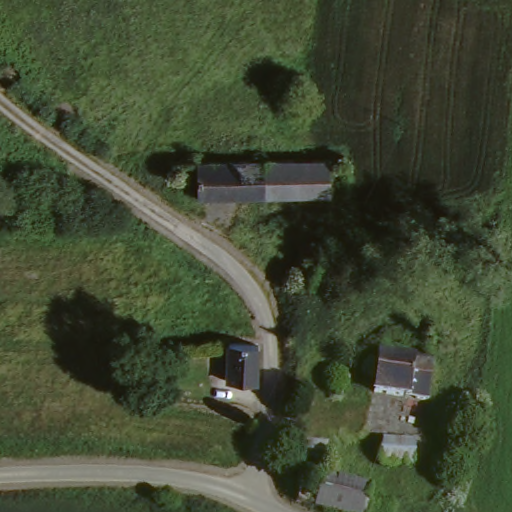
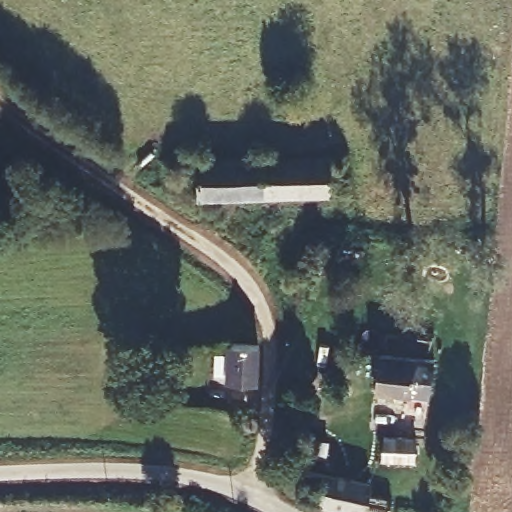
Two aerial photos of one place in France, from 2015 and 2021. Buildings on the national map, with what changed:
unchanged [(332,163),(332,197),(193,201),(194,166),(253,164),(332,163)]
unchanged [(303,259),(320,264),(310,288),(308,288),(295,284),(303,259)]
unchanged [(426,351),(423,370),(428,371),(424,412),(369,404),(376,358),(378,346),(426,351)]
unchanged [(254,385),(224,384),(225,347),(256,348),(254,385)]
unchanged [(380,454),(381,439),(416,440),(413,464),(379,463),(380,454)]
unchanged [(326,459),(302,457),(302,443),(328,447),(326,459)]
unchanged [(305,507),(311,477),(362,488),(361,497),(360,502),(383,507),(381,512),(326,512),(305,507)]

